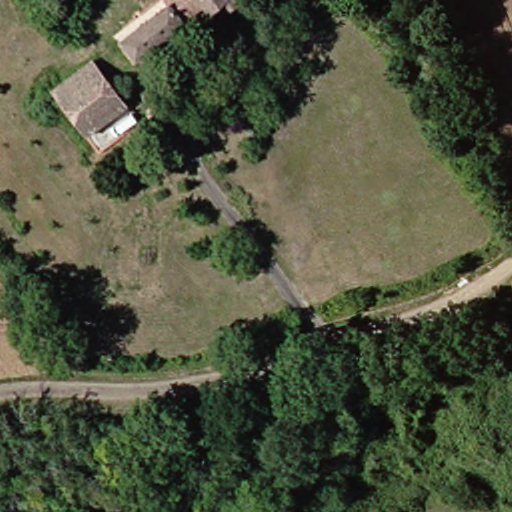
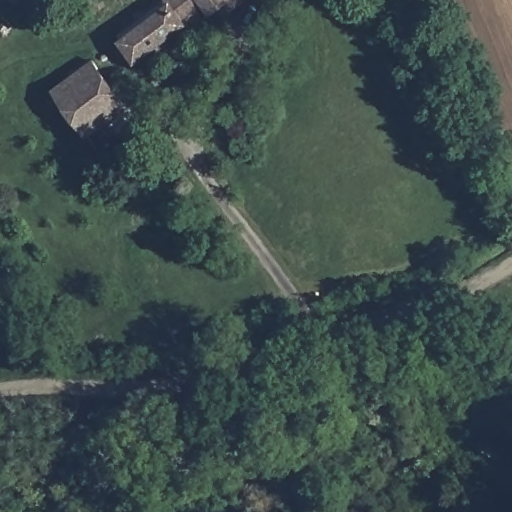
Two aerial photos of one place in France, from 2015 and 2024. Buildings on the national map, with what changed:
unchanged [(233,4),(215,19),(201,0),(252,0),(239,11),(233,4)]
unchanged [(179,1),(195,22),(145,60),(129,40),(179,1)]
unchanged [(102,59),(138,102),(97,136),(61,91),(102,59)]

